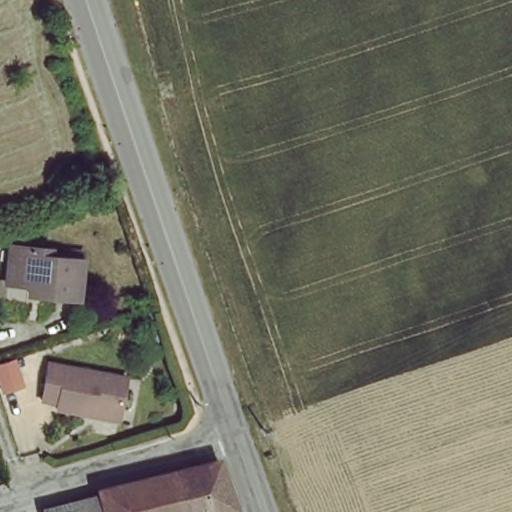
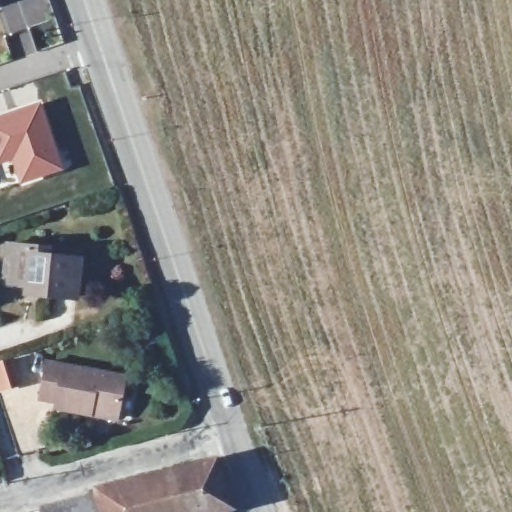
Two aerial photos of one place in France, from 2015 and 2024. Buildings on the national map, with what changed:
new [(63,169),(19,183),(11,160),(0,163),(0,117),(40,103),(63,169)]
unchanged [(29,294),(8,291),(11,254),(50,259),(85,262),(84,271),(78,310),(45,306),(45,303),(28,301),(29,294)]
unchanged [(88,418),(54,412),(55,405),(40,402),(46,367),(123,380),(116,416),(115,422),(88,418)]
unchanged [(95,512),(91,500),(89,494),(209,469),(226,511),(225,512),(95,512)]
unchanged [(95,512),(49,512),(91,500),(95,512)]

